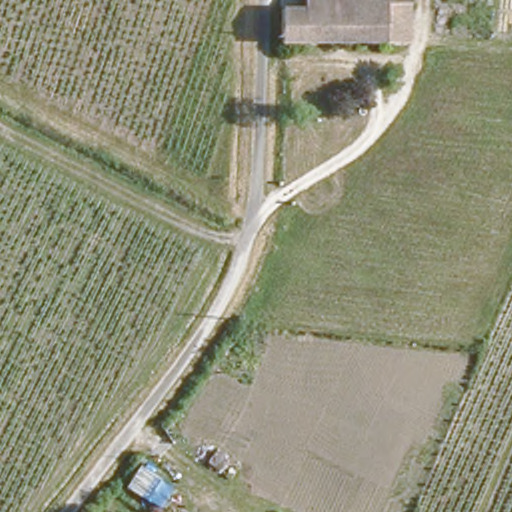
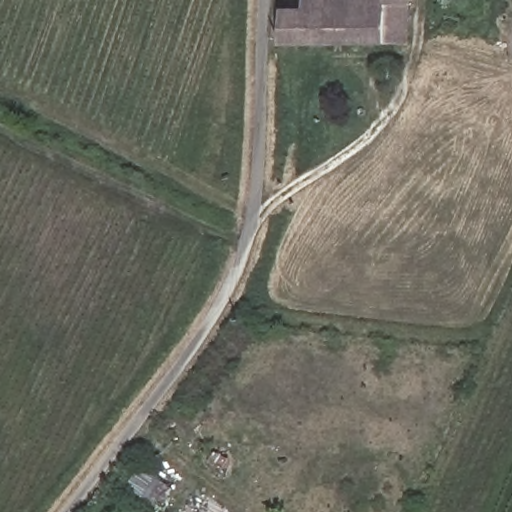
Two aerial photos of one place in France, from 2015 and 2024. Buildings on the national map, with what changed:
unchanged [(399,43),(279,42),(280,4),(305,4),(305,0),(388,0),(389,30),(400,31),(399,43)]
unchanged [(399,5),(398,0),(409,0),(408,5),(399,5)]

